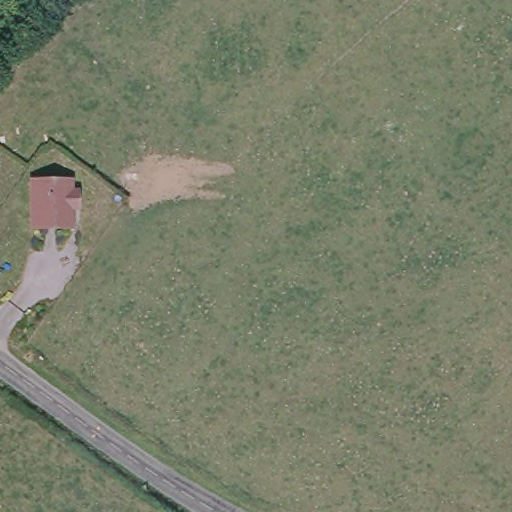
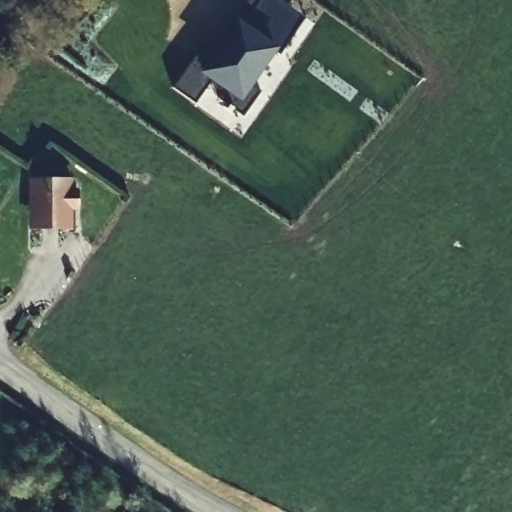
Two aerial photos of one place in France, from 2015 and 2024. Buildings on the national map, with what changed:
new [(207,79),(192,100),(174,87),(197,55),(205,61),(248,0),(261,0),(295,25),(240,102),(207,79)]
unchanged [(75,202),(61,202),(62,229),(24,230),(23,179),(75,178),(75,202)]

